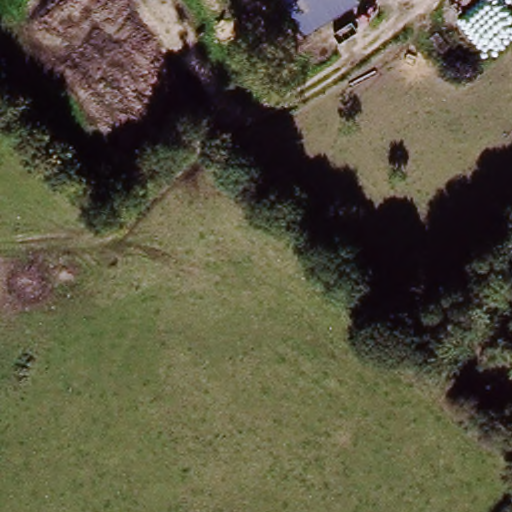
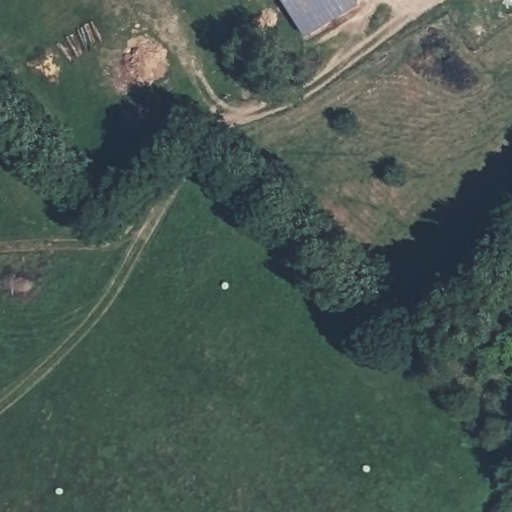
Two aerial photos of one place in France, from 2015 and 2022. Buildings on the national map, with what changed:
unchanged [(352,3),(298,35),(279,0),(351,0),(352,3)]

